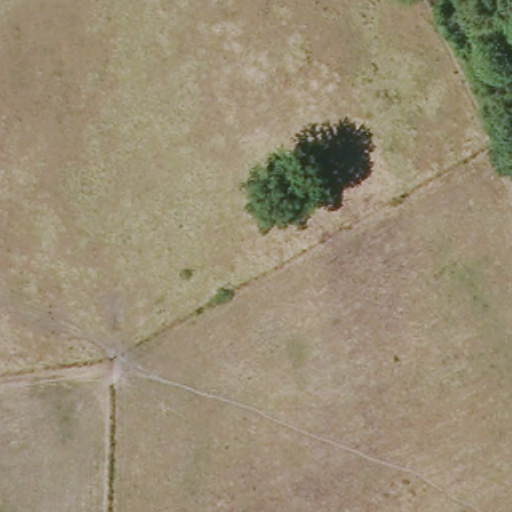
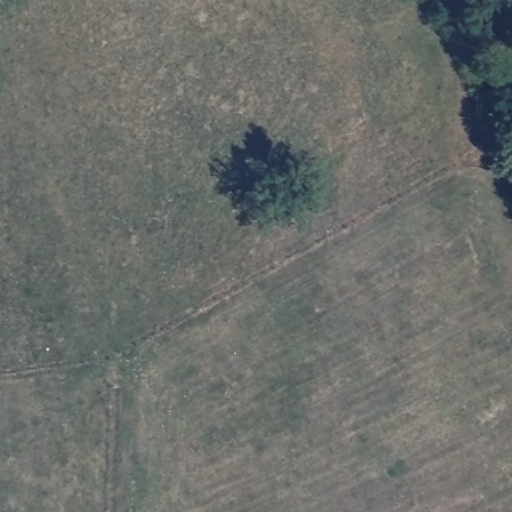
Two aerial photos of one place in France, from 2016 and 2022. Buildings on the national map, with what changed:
[]

